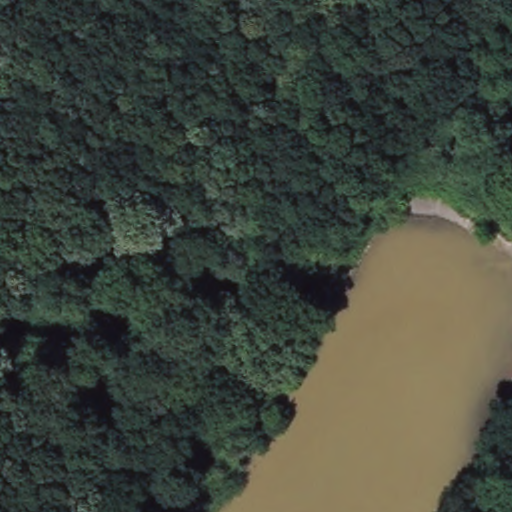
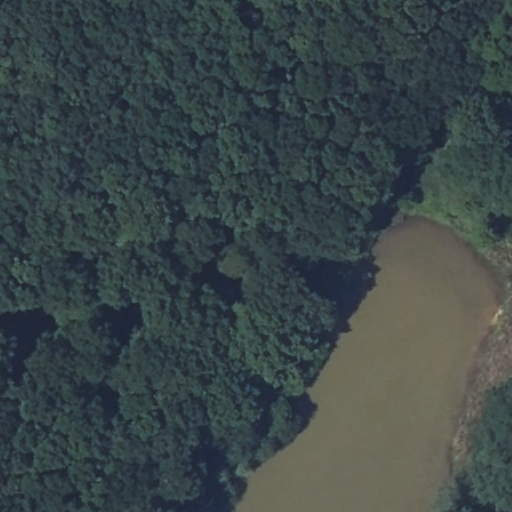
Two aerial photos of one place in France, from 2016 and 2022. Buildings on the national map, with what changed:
unchanged [(446,149),(461,159),(449,177),(436,168),(446,149)]

